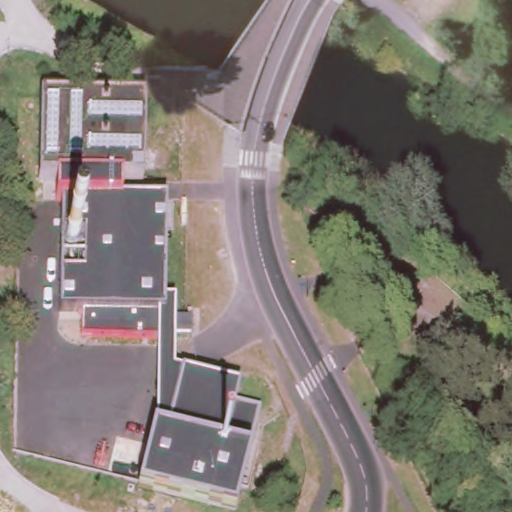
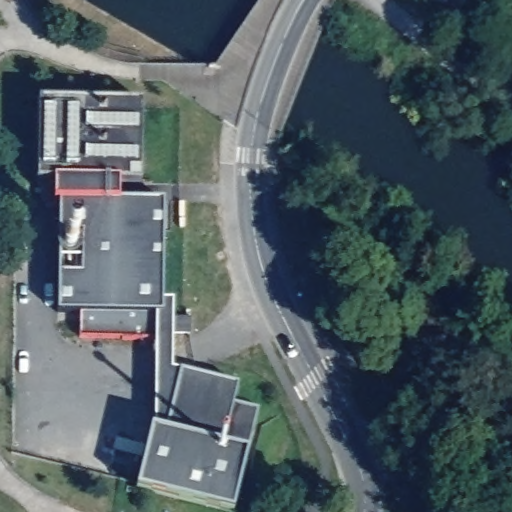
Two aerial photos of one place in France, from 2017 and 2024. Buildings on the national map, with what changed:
unchanged [(142,185),(39,183),(41,102),(145,104),(142,185)]
unchanged [(160,313),(192,313),(192,328),(173,328),(160,328),(160,334),(157,334),(82,333),(83,305),(85,232),(67,232),(67,200),(85,201),(162,201),(160,283),(160,313)]
unchanged [(235,512),(231,512),(137,489),(153,429),(157,334),(160,334),(160,328),(173,328),(172,369),(240,385),(237,396),(260,407),(250,451),(235,512)]

